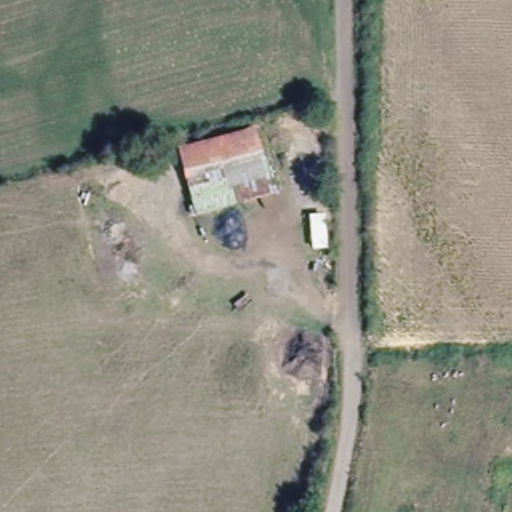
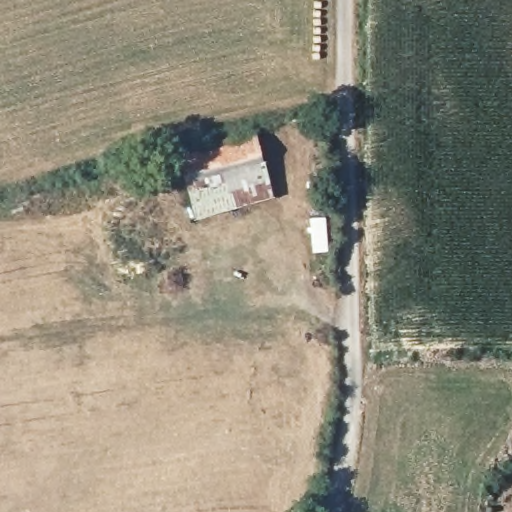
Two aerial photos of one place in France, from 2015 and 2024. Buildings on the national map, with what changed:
unchanged [(197,214),(185,180),(179,183),(173,149),(255,129),(273,200),(197,214)]

